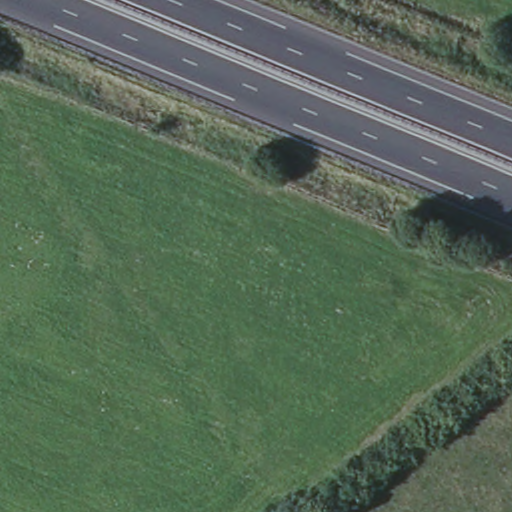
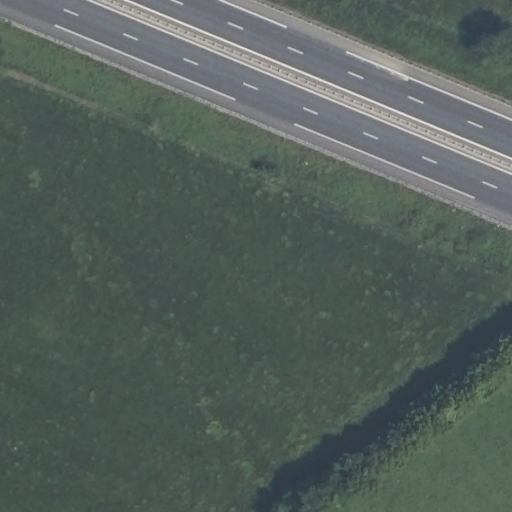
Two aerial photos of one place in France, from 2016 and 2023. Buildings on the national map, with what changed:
[]

